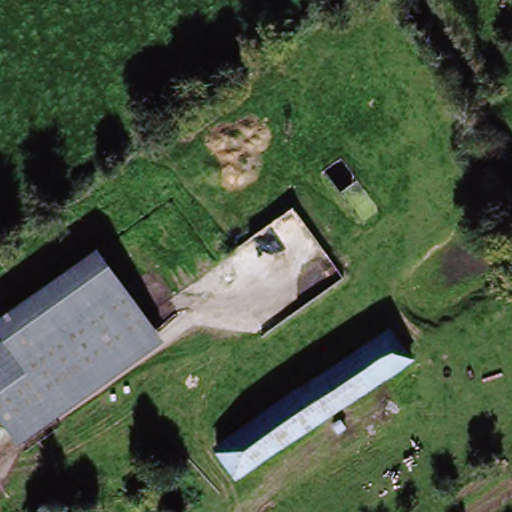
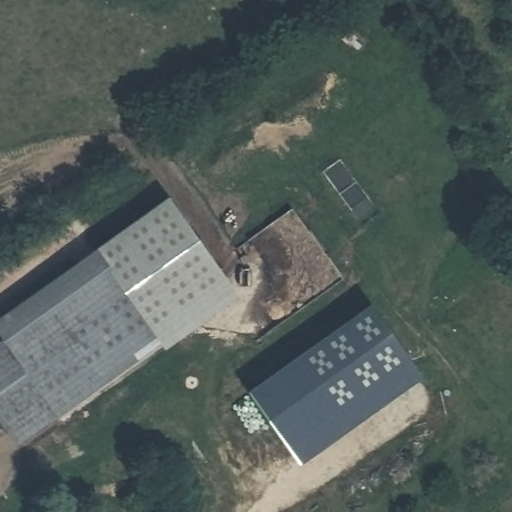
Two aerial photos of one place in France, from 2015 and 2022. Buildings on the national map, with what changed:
new [(112,262),(196,208),(250,290),(167,345),(113,263),(112,262)]
unchanged [(167,345),(17,444),(0,418),(0,362),(18,350),(7,331),(113,263),(167,345)]
new [(302,464),(251,391),(372,306),(423,376),(302,464)]
demolished [(237,481),(212,444),(388,331),(413,369),(237,481)]

